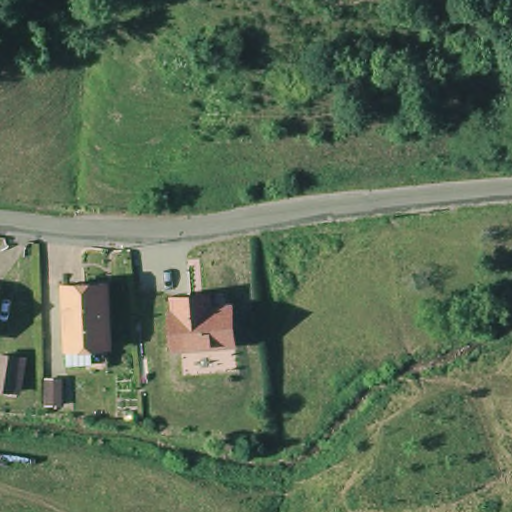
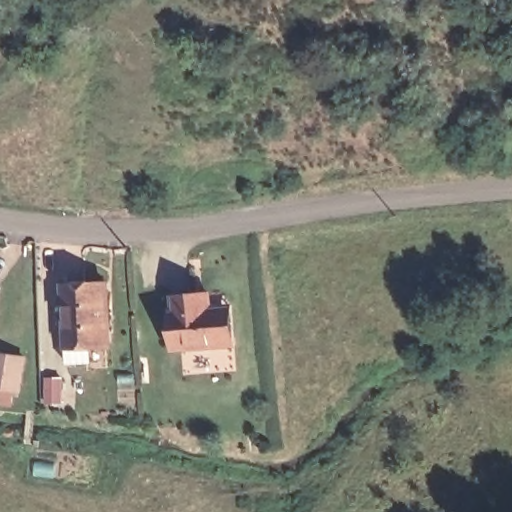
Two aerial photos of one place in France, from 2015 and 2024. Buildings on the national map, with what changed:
unchanged [(75,357),(75,343),(73,279),(111,278),(114,342),(114,356),(75,357)]
unchanged [(0,308),(0,285),(3,285),(0,308)]
unchanged [(171,296),(189,294),(208,293),(209,307),(219,307),(222,345),(170,349),(166,310),(171,310),(171,296)]
unchanged [(0,398),(0,362),(18,364),(23,365),(19,400),(14,399),(0,398)]
unchanged [(68,406),(64,418),(55,416),(47,414),(49,402),(54,403),(68,406)]

